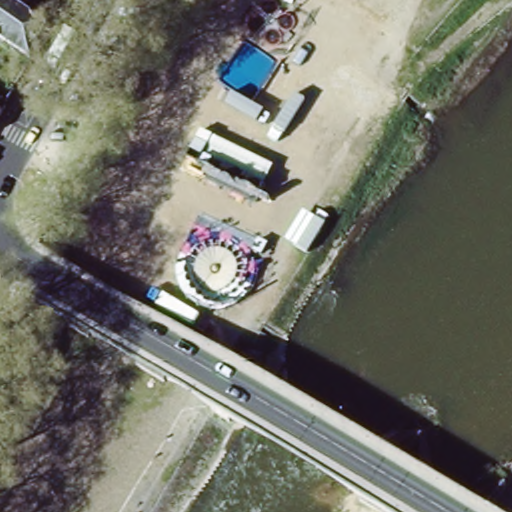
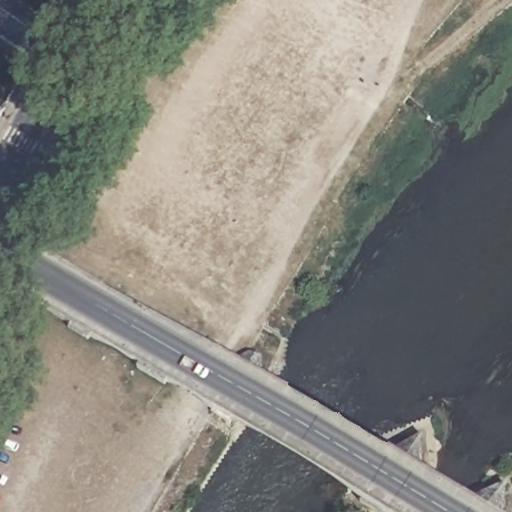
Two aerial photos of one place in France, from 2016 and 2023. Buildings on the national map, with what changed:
unchanged [(29,61),(26,59),(0,41),(0,0),(10,0),(47,25),(29,61)]
unchanged [(50,3),(46,0),(52,0),(50,3)]
unchanged [(4,106),(0,115),(0,104),(4,106)]

